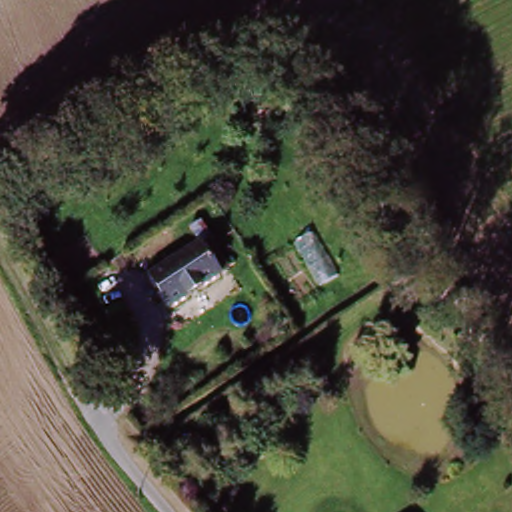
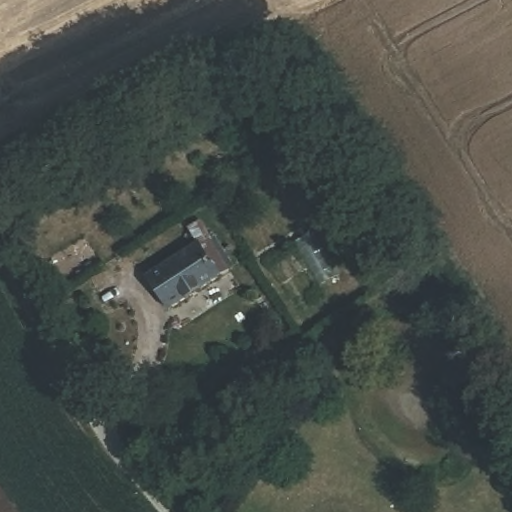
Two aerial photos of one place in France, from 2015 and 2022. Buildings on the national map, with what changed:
unchanged [(196,242),(200,247),(209,241),(226,268),(217,275),(220,279),(169,310),(147,276),(196,242)]

